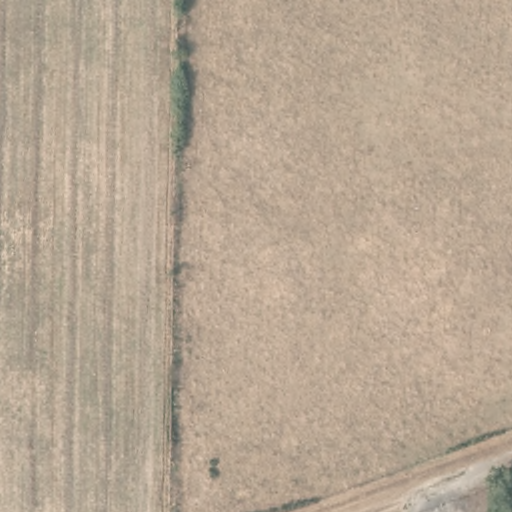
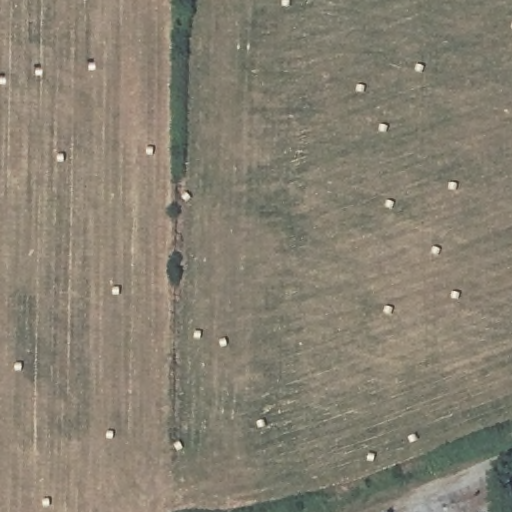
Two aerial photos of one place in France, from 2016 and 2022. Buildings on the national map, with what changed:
[]

